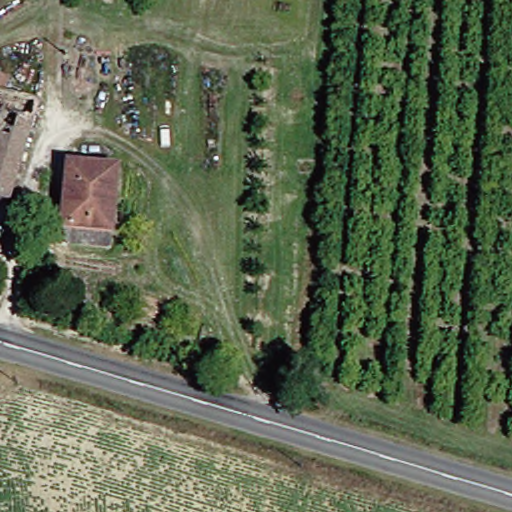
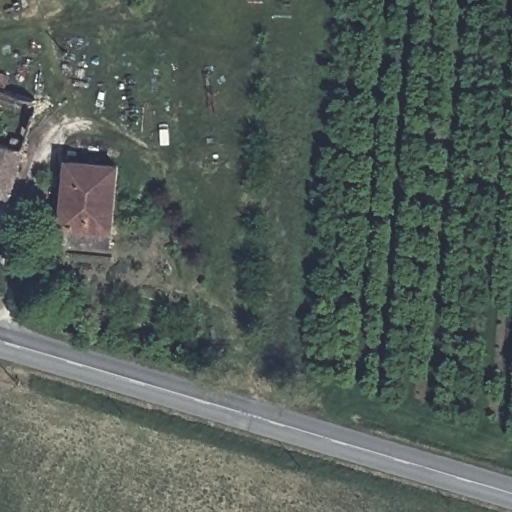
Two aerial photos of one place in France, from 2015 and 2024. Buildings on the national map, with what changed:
unchanged [(139,70),(125,107),(64,86),(77,48),(139,70)]
unchanged [(16,82),(10,95),(42,109),(8,204),(0,201),(0,76),(16,82)]
unchanged [(126,161),(125,187),(121,246),(79,241),(66,240),(69,207),(71,156),(126,161)]

